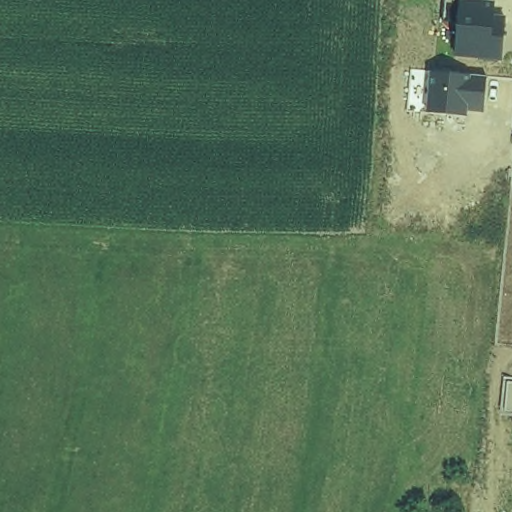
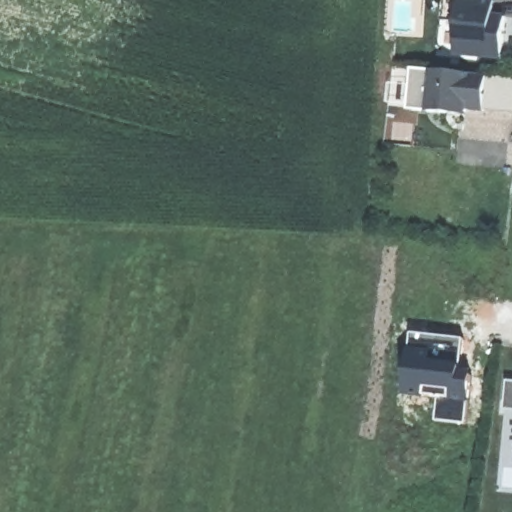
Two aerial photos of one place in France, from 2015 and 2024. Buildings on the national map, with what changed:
unchanged [(482,0),(495,1),(494,17),(505,18),(502,59),(456,55),(459,23),(443,21),(445,0),(482,0)]
unchanged [(412,69),(432,71),(455,73),(487,76),(487,77),(512,79),(512,114),(484,111),(467,110),(466,116),(442,114),(409,110),(412,69)]
new [(406,396),(411,331),(466,337),(463,378),(471,379),(469,402),(467,425),(437,422),(439,400),(406,396)]
unchanged [(508,382),(512,382),(512,411),(505,410),(508,382)]

